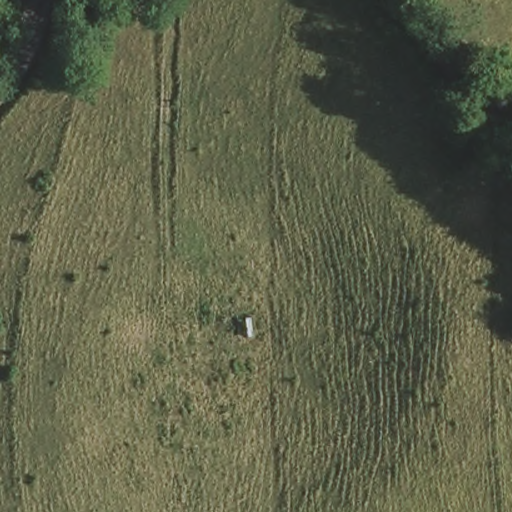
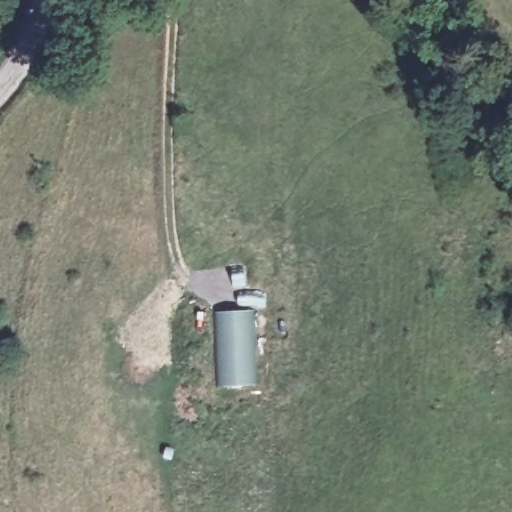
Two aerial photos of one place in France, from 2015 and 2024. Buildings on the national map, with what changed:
new [(253,309),(256,384),(216,387),(212,310),(253,309)]

